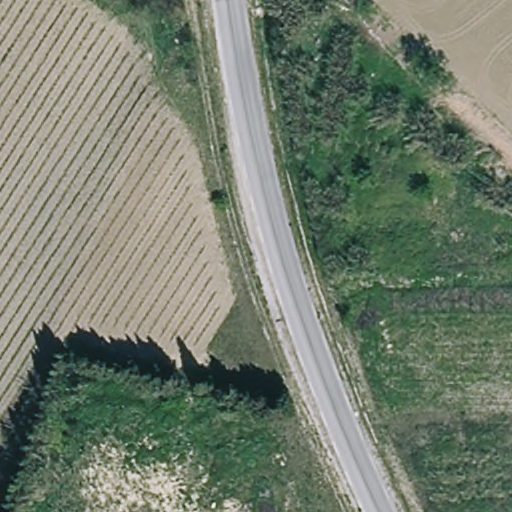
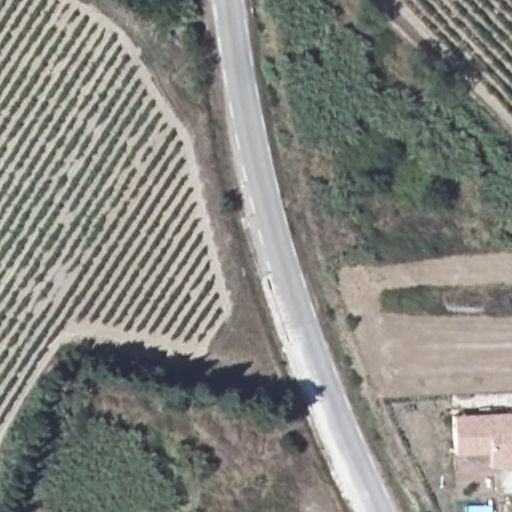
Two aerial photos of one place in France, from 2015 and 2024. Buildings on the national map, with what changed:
new [(489,467),(488,452),(453,454),(452,414),(511,412),(511,406),(512,406),(512,466),(489,467)]

